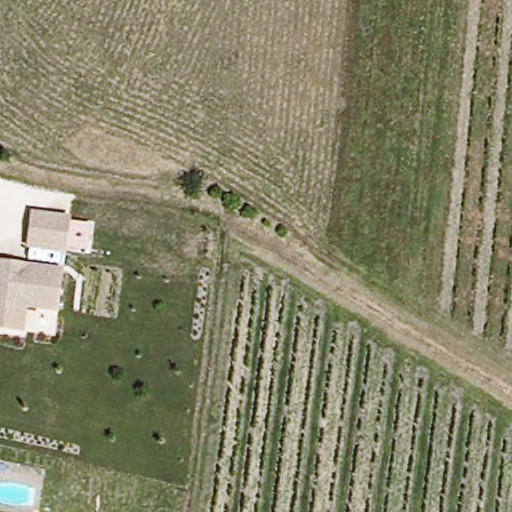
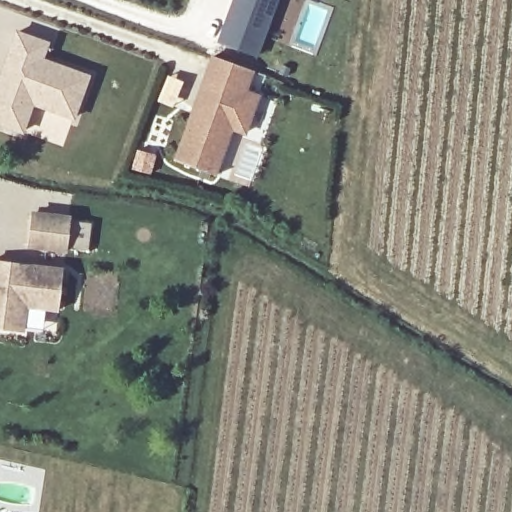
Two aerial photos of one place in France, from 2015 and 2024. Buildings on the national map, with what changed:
new [(232,0),(276,0),(256,57),(216,42),(232,0)]
new [(11,52),(18,34),(48,45),(42,62),(87,80),(71,120),(31,105),(22,132),(0,124),(0,80),(11,52)]
new [(254,71),(247,90),(260,95),(245,136),(232,131),(217,175),(172,161),(210,55),(254,71)]
unchanged [(71,212),(67,252),(23,247),(28,209),(71,212)]
unchanged [(63,266),(59,310),(26,307),(24,331),(0,329),(0,258),(63,266)]

